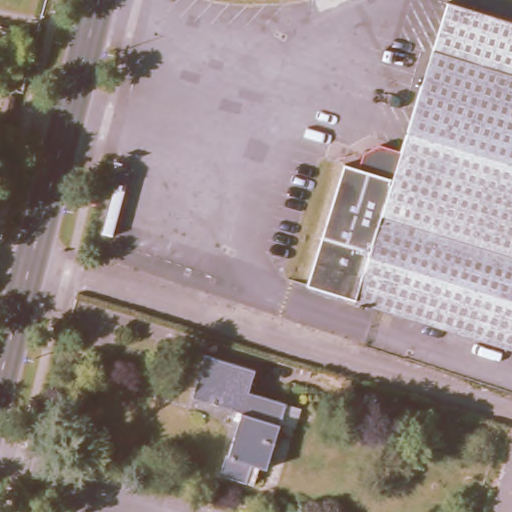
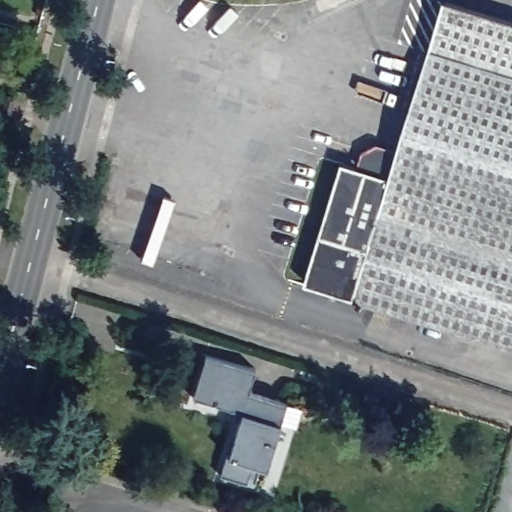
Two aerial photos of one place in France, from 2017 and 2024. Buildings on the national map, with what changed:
unchanged [(307,280),(343,160),(392,174),(446,0),(460,0),(512,16),(512,342),(307,280)]
unchanged [(0,45),(0,26),(30,33),(25,51),(0,45)]
unchanged [(248,481),(215,471),(220,451),(223,451),(236,408),(187,393),(200,352),(250,367),(243,387),(281,400),(295,405),(290,423),(275,420),(261,465),(254,462),(248,481)]

